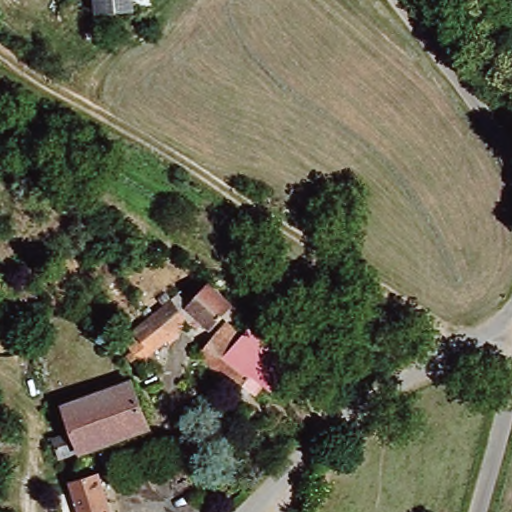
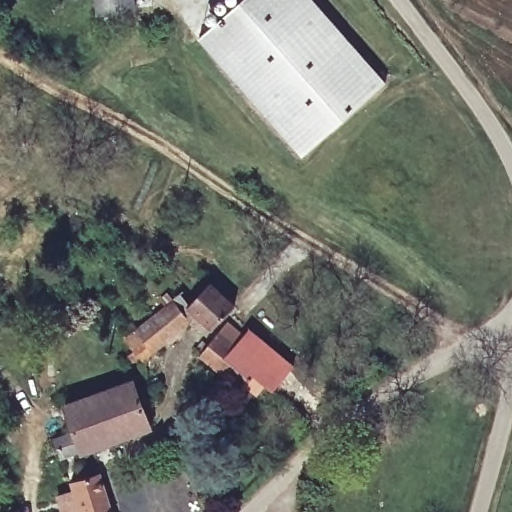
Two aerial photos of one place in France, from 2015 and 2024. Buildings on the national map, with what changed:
unchanged [(93,1),(93,0),(111,0),(93,1)]
new [(244,0),(307,0),(384,85),(301,159),(196,42),(244,0)]
unchanged [(201,349),(211,339),(204,335),(179,314),(172,321),(178,326),(128,366),(108,343),(158,305),(154,300),(166,289),(184,304),(199,288),(213,271),(246,300),(230,318),(251,332),(254,328),(294,359),(276,385),(266,377),(254,392),(223,366),(201,349)]
unchanged [(69,402),(134,367),(140,379),(110,393),(115,407),(78,422),(69,402)]
unchanged [(115,407),(110,393),(140,379),(161,414),(73,453),(64,436),(80,430),(78,422),(115,407)]
unchanged [(110,485),(119,512),(84,512),(73,473),(103,465),(110,485)]
unchanged [(176,512),(119,512),(110,485),(159,468),(176,512)]

